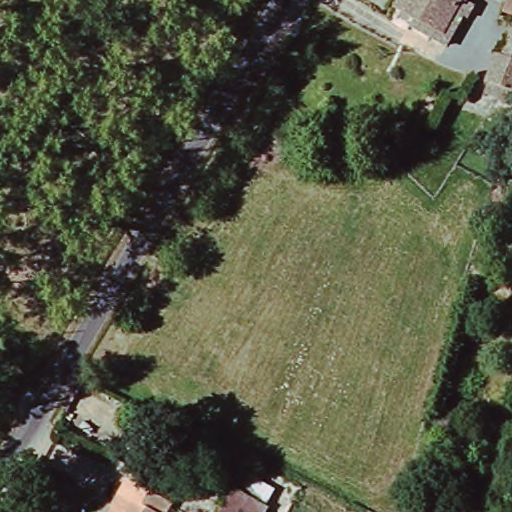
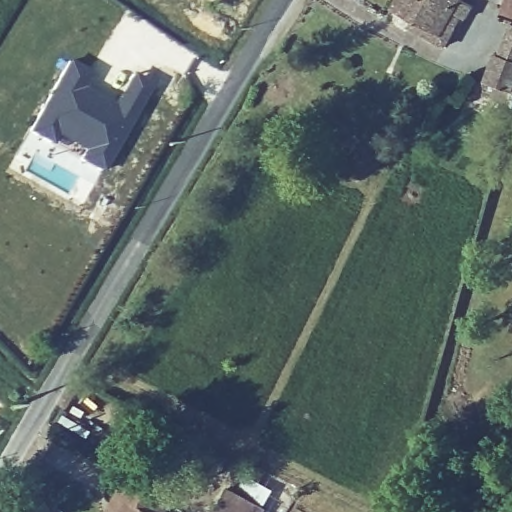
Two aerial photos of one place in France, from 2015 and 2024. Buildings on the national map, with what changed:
unchanged [(469,26),(454,54),(416,33),(421,24),(407,17),(415,0),(472,0),(462,22),(469,26)]
unchanged [(498,0),(512,0),(512,15),(505,12),(508,2),(498,0)]
unchanged [(512,25),(512,70),(499,65),(512,24),(512,25)]
new [(39,103),(66,59),(91,74),(86,83),(112,100),(129,71),(153,82),(102,171),(76,153),(58,140),(49,148),(23,133),(39,103)]
unchanged [(157,504),(167,510),(166,512),(109,512),(115,501),(124,486),(157,504)]
unchanged [(229,487),(267,506),(263,512),(215,512),(229,487)]

